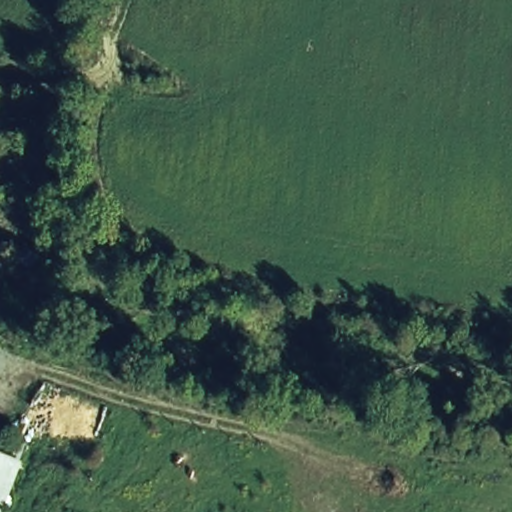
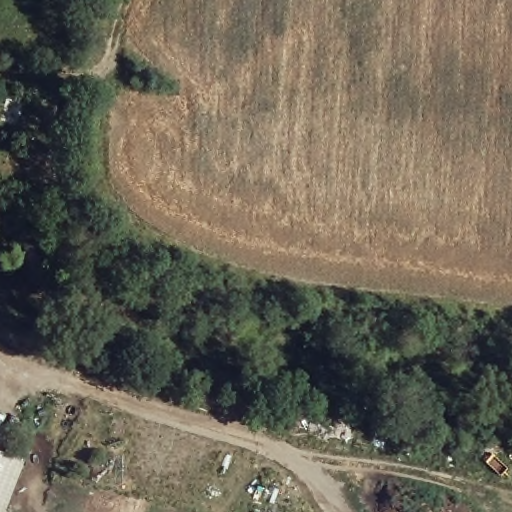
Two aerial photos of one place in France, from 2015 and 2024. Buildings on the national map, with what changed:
unchanged [(6,512),(0,512),(0,452),(25,462),(6,512)]

